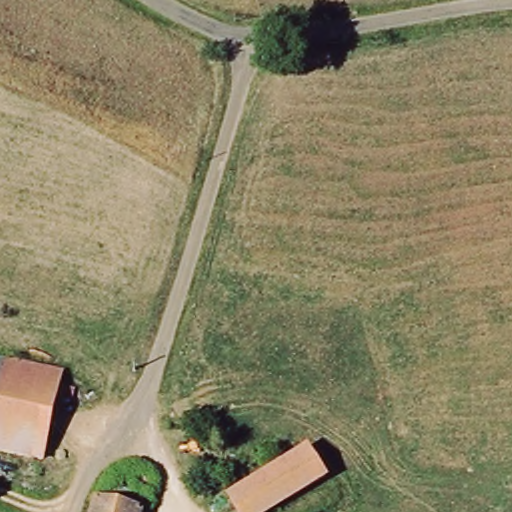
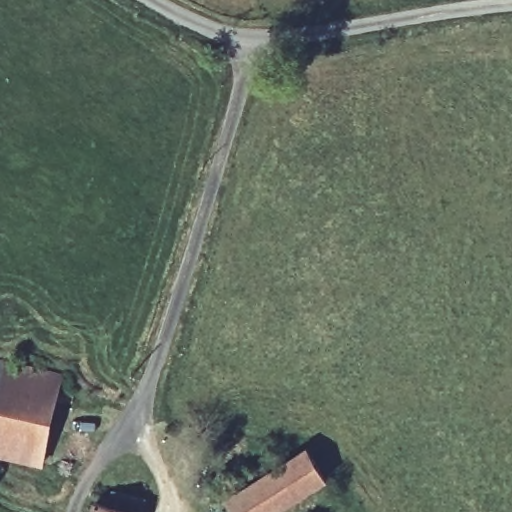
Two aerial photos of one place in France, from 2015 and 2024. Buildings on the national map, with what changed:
unchanged [(12,368),(6,391),(0,389),(0,364),(12,368)]
unchanged [(40,471),(0,460),(0,413),(6,391),(12,368),(65,384),(40,471)]
unchanged [(6,391),(0,413),(0,389),(6,391)]
unchanged [(323,484),(278,512),(239,512),(232,499),(304,455),(323,484)]
unchanged [(99,502),(137,512),(96,512),(99,502)]

